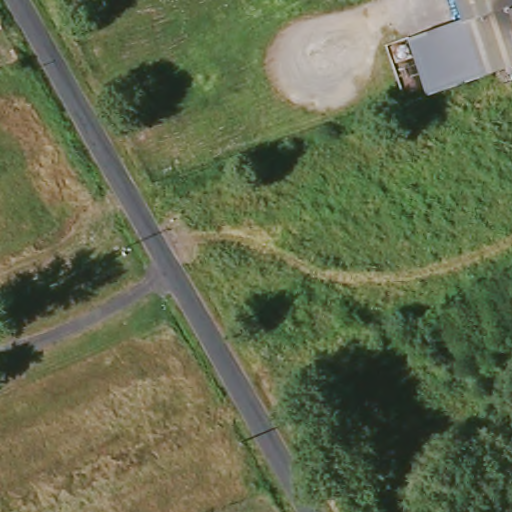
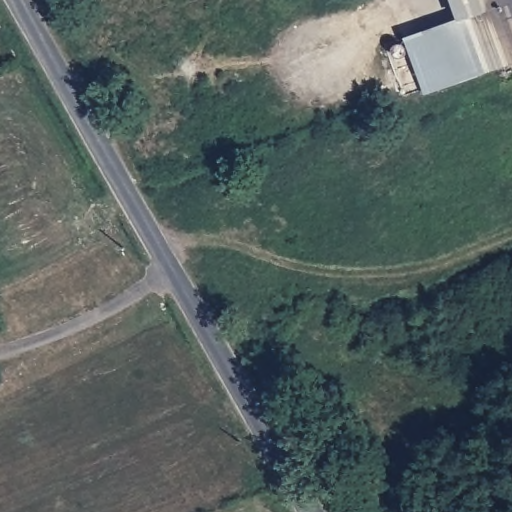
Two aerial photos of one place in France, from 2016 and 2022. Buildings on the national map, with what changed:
unchanged [(456,17),(452,4),(451,0),(512,0),(512,55),(471,68),(456,17)]
unchanged [(471,68),(417,86),(401,34),(456,17),(471,68)]

